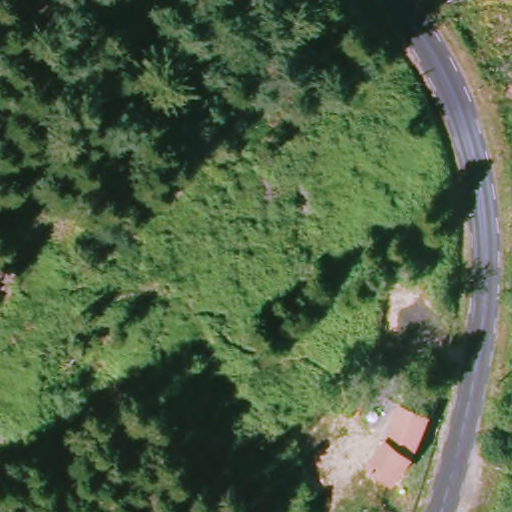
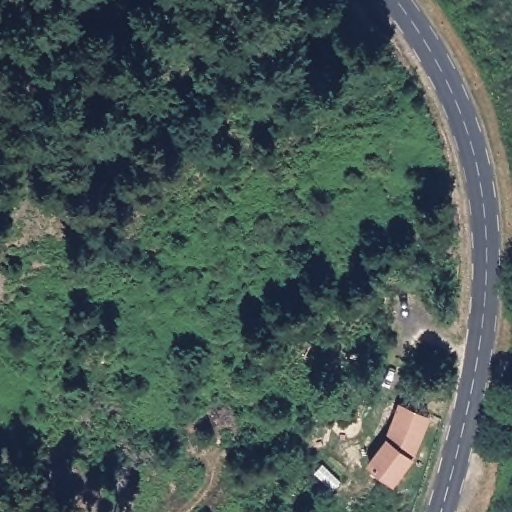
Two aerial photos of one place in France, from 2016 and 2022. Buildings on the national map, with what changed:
unchanged [(368,463),(400,405),(423,420),(393,482),(368,463)]

